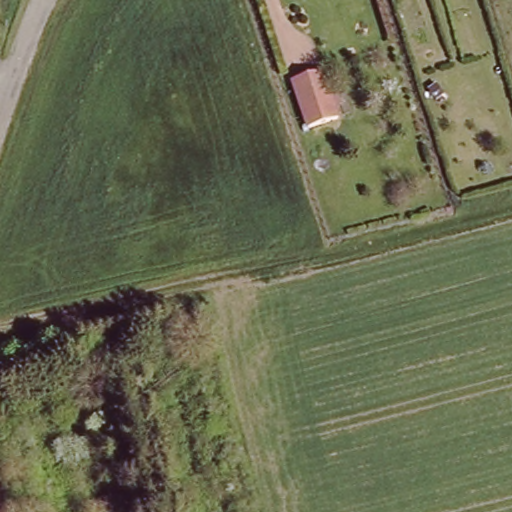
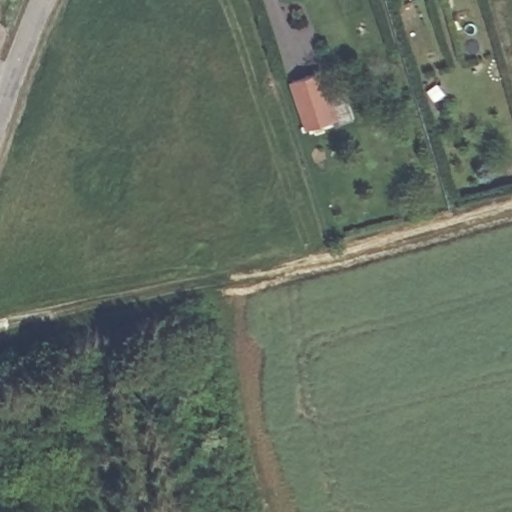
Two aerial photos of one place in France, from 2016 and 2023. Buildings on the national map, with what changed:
unchanged [(322,70),(339,120),(308,129),(292,80),(322,70)]

